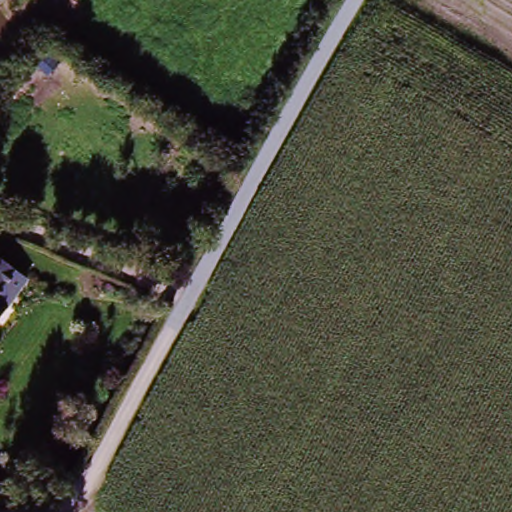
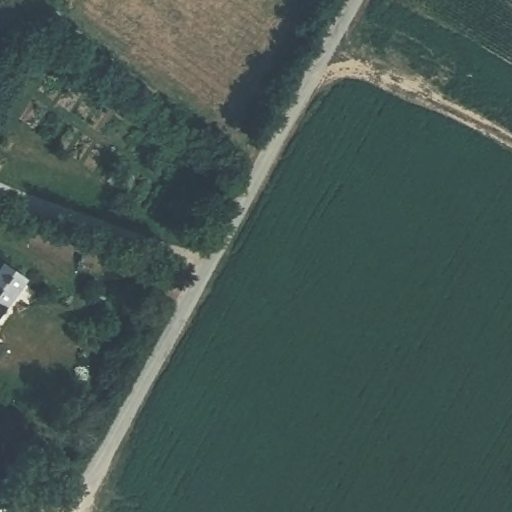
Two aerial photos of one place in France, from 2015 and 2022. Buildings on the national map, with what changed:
unchanged [(0,309),(10,316),(0,329),(0,266),(21,282),(0,309)]

